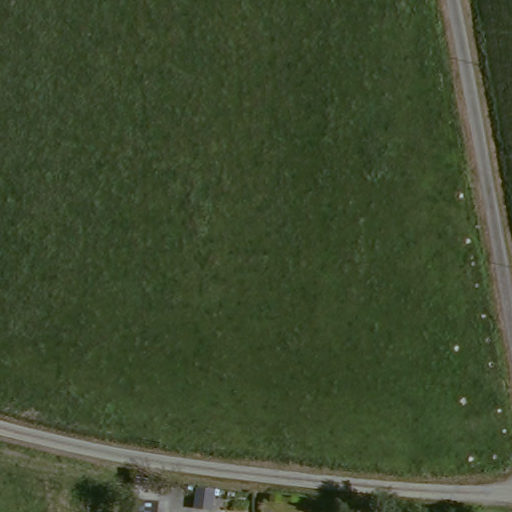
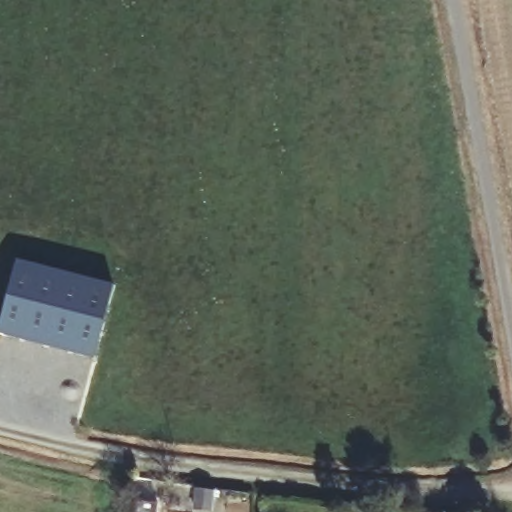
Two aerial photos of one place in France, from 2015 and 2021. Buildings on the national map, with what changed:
new [(16,256),(114,281),(95,355),(0,330),(0,319),(16,256)]
unchanged [(158,500),(158,512),(135,512),(135,500),(158,500)]
unchanged [(320,512),(302,512),(303,500),(321,502),(320,512)]

